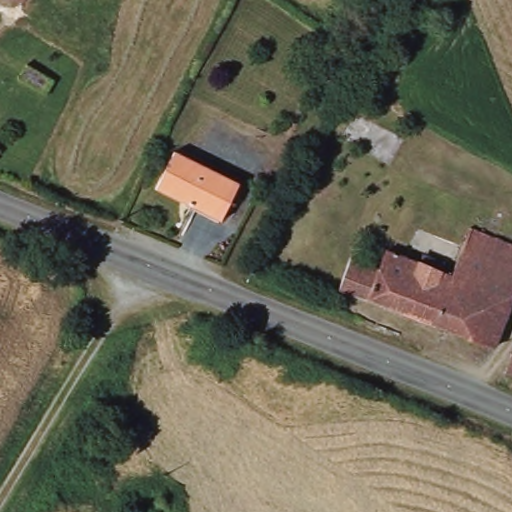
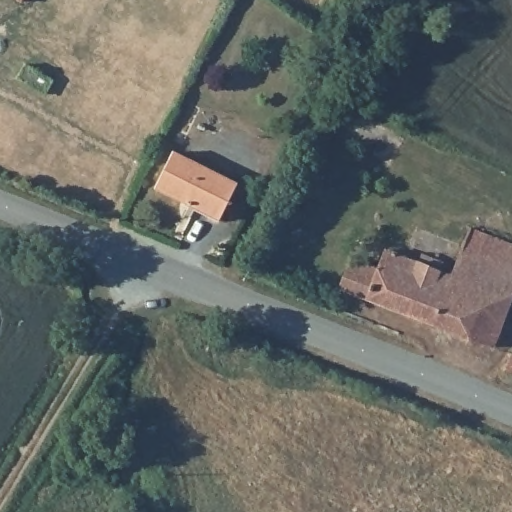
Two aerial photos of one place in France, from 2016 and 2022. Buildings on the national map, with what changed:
unchanged [(21,3),(18,0),(23,0),(21,3)]
unchanged [(45,94),(18,79),(26,66),(53,81),(45,94)]
unchanged [(237,185),(220,220),(155,188),(173,153),(237,185)]
unchanged [(373,269),(380,251),(385,237),(401,244),(396,257),(446,275),(464,228),(512,247),(512,286),(487,348),(333,289),(345,258),(373,269)]
unchanged [(512,376),(504,373),(510,354),(512,355),(512,376)]

